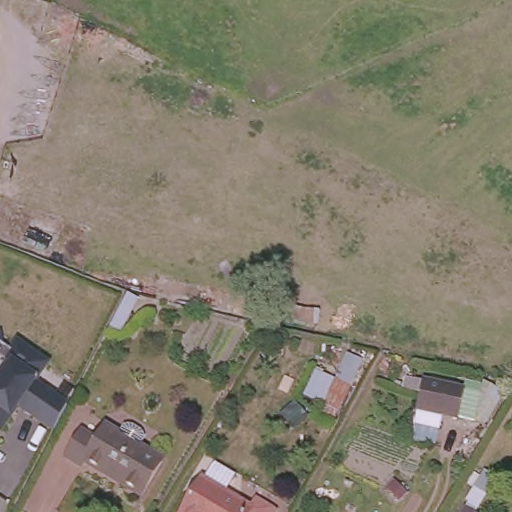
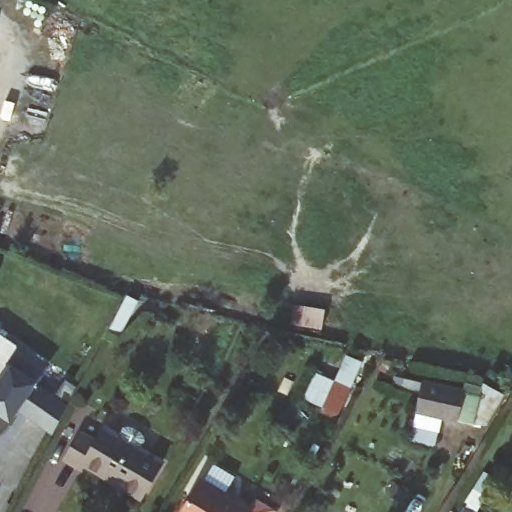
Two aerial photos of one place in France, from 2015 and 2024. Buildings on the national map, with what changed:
unchanged [(0,363),(0,340),(5,340),(4,349),(15,357),(20,348),(51,369),(37,388),(70,409),(57,435),(26,414),(27,412),(20,407),(2,434),(0,433),(0,387),(12,370),(0,363)]
unchanged [(297,394),(311,372),(330,381),(342,355),(361,360),(341,415),(297,394)]
unchanged [(456,416),(417,407),(424,379),(462,388),(456,416)]
unchanged [(86,462),(82,468),(66,459),(66,458),(82,432),(97,441),(105,428),(163,462),(143,496),(86,462)]
unchanged [(201,479),(211,462),(232,474),(222,492),(248,507),(252,499),(268,509),(266,512),(179,512),(199,478),(201,479)]

